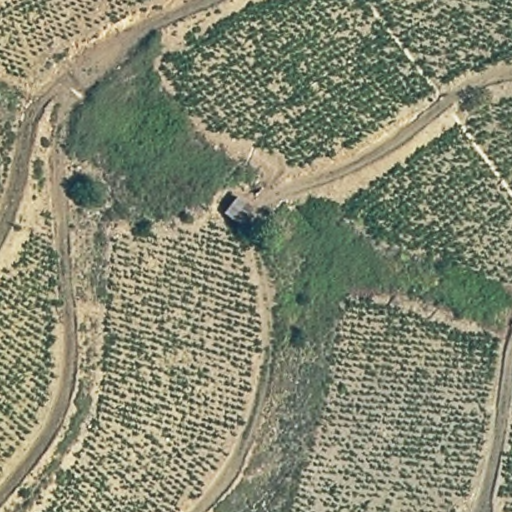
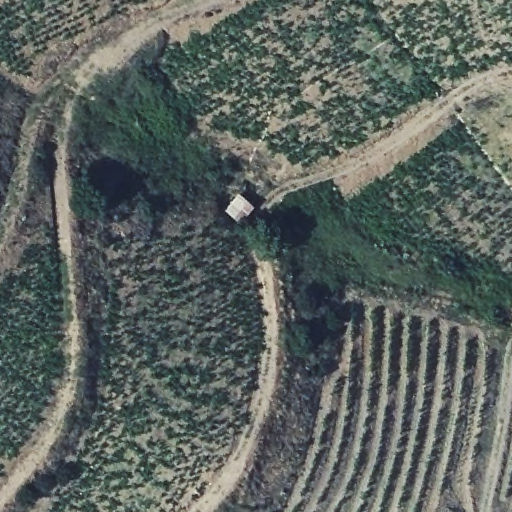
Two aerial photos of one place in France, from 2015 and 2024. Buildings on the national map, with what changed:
unchanged [(255,206),(241,222),(226,209),(241,193),(255,206)]

